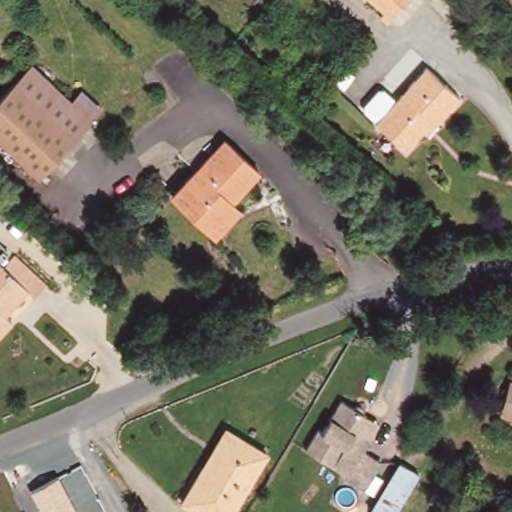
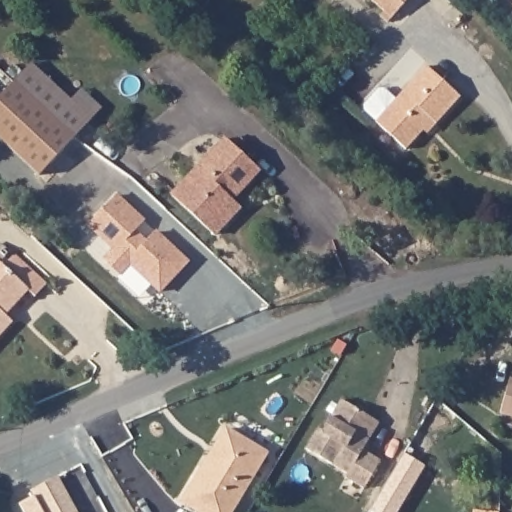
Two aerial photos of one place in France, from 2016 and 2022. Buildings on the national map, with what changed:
unchanged [(388,19),(380,12),(384,6),(377,0),(405,0),(388,19)]
unchanged [(13,77),(27,62),(64,96),(74,85),(86,96),(96,105),(87,116),(72,132),(36,174),(0,141),(0,93),(13,77)]
unchanged [(374,119),(362,109),(362,103),(376,88),(381,87),(393,98),(424,64),(459,95),(433,124),(427,119),(402,148),(373,121),(374,119)]
unchanged [(256,169),(224,203),(231,210),(214,231),(172,193),(222,138),(256,169)]
new [(141,217),(133,226),(145,238),(154,228),(186,257),(158,287),(128,260),(118,271),(102,257),(112,246),(87,222),(114,192),(141,217)]
unchanged [(6,265),(17,252),(48,281),(39,293),(32,286),(8,311),(16,317),(0,335),(0,259),(6,265)]
unchanged [(512,414),(496,408),(506,378),(512,380),(512,414)]
unchanged [(378,460),(363,487),(342,477),(345,471),(304,448),(315,428),(320,431),(338,399),(349,405),(352,400),(357,399),(360,399),(363,402),(364,407),(361,412),(376,420),(367,437),(360,449),(378,460)]
unchanged [(229,512),(196,512),(182,503),(225,432),(263,454),(229,512)]
unchanged [(393,512),(377,512),(371,508),(397,460),(415,470),(393,512)]
unchanged [(39,512),(28,492),(58,475),(75,512),(39,512)]

